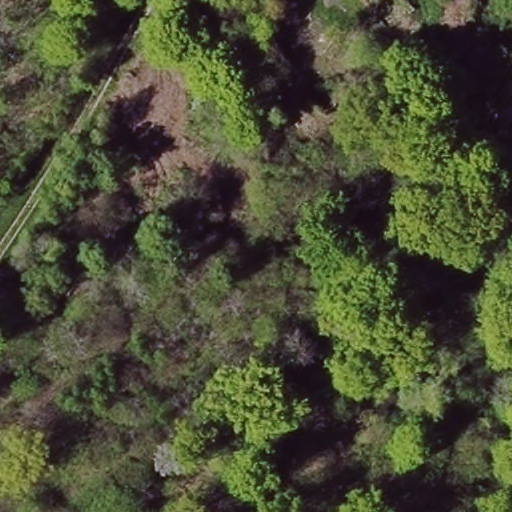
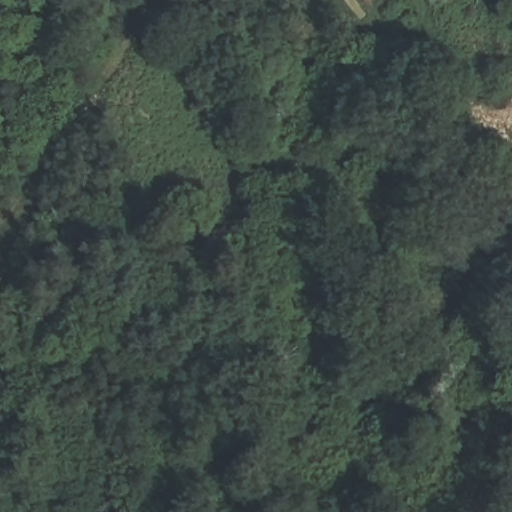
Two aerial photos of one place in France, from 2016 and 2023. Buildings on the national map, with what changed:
unchanged [(356,0),(372,0),(361,8),(356,0)]

